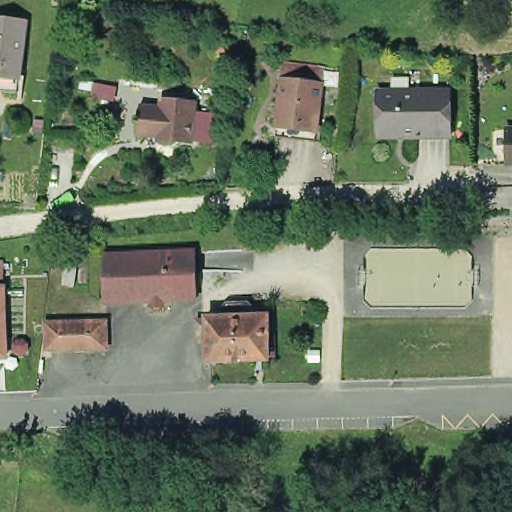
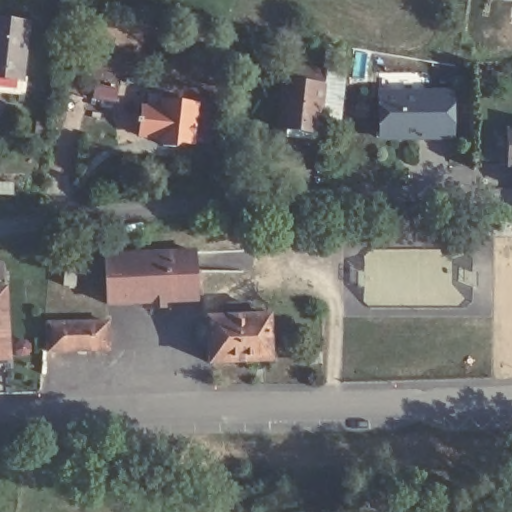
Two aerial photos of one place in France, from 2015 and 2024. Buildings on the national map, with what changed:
unchanged [(0,90),(0,17),(25,19),(18,92),(0,90)]
unchanged [(273,137),(274,132),(279,90),(281,74),(321,79),(319,95),(314,137),(314,142),(273,137)]
unchanged [(97,85),(97,93),(84,92),(85,84),(97,85)]
unchanged [(375,127),(375,88),(448,88),(447,132),(402,133),(375,133),(375,127)]
unchanged [(219,142),(197,140),(197,144),(190,143),(182,148),(168,146),(164,141),(164,138),(147,137),(147,135),(142,135),(143,121),(140,121),(141,115),(144,116),(145,106),(167,108),(168,99),(202,102),(200,116),(221,118),(219,142)]
unchanged [(509,157),(509,131),(512,131),(512,165),(509,165),(509,157)]
unchanged [(104,305),(101,256),(189,251),(192,299),(104,305)]
unchanged [(5,277),(0,277),(0,262),(5,261),(5,277)]
unchanged [(77,261),(75,288),(65,286),(67,261),(77,261)]
unchanged [(8,351),(0,352),(0,283),(7,283),(8,351)]
unchanged [(273,363),(212,366),(210,345),(200,346),(200,328),(210,327),(210,324),(225,323),(225,316),(230,311),(250,310),(255,315),(255,322),(272,321),(273,363)]
unchanged [(45,352),(44,324),(104,324),(105,349),(45,352)]

